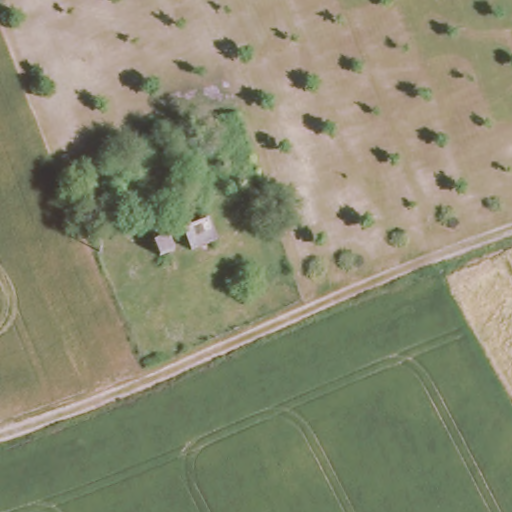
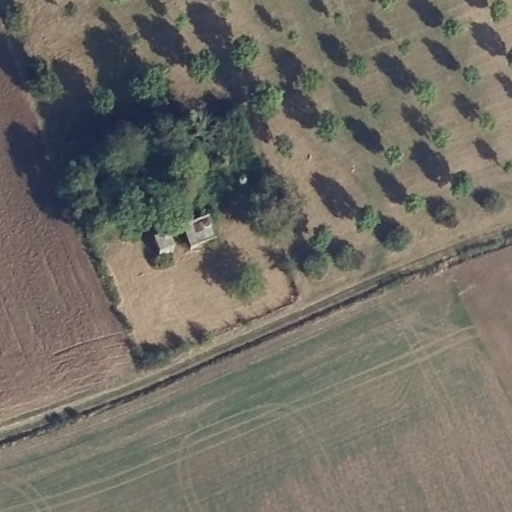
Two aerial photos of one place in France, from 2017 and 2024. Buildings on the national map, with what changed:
unchanged [(195,249),(186,226),(209,218),(217,240),(195,249)]
unchanged [(160,254),(155,238),(172,232),(177,247),(160,254)]

